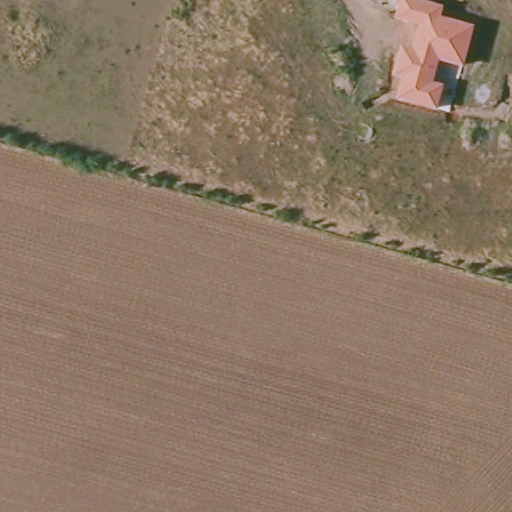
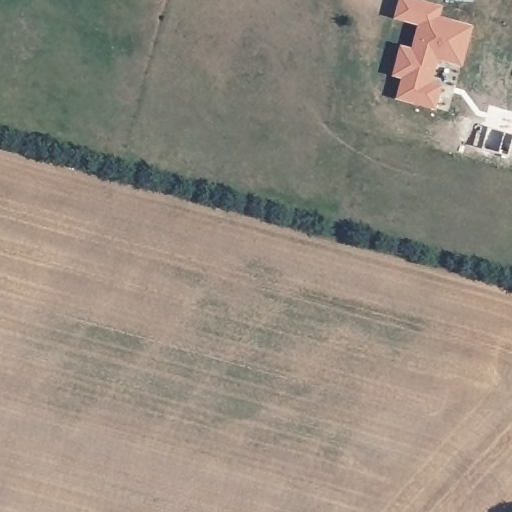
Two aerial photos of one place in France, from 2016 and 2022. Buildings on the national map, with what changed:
unchanged [(394,76),(402,45),(415,48),(420,25),(395,19),(400,0),(423,0),(444,6),(441,17),(475,26),(464,68),(440,61),(434,82),(445,85),(438,110),(397,99),(403,78),(394,76)]

